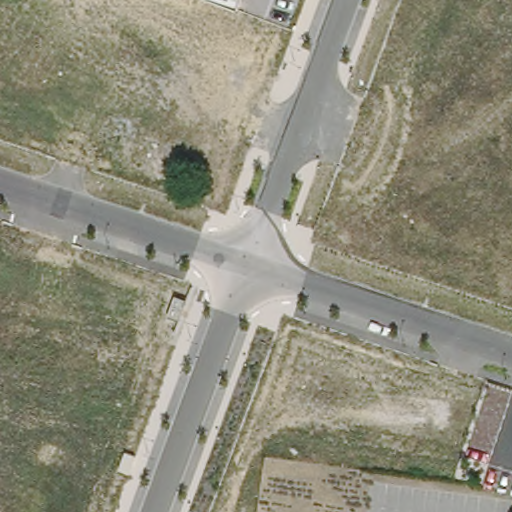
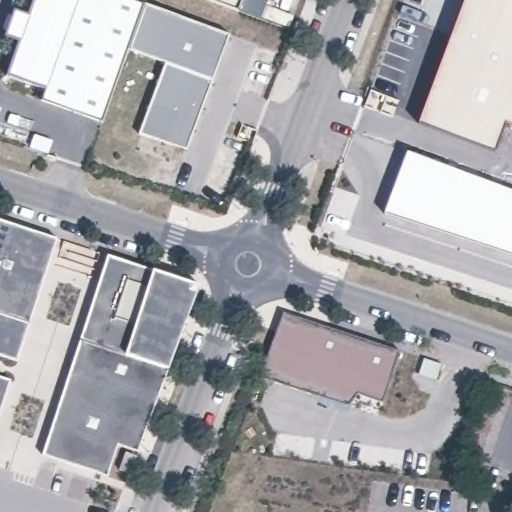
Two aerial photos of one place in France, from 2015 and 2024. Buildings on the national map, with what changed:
new [(42,101),(45,89),(7,75),(20,41),(6,36),(15,10),(29,15),(35,0),(129,0),(143,5),(125,52),(102,123),(42,101)]
unchanged [(214,0),(242,0),(238,9),(214,0)]
new [(465,0),(512,0),(512,57),(452,35),(465,0)]
unchanged [(187,157),(143,140),(168,70),(125,52),(143,5),(226,37),(187,157)]
new [(452,35),(512,57),(512,124),(507,122),(495,152),(419,123),(452,35)]
new [(407,146),(512,186),(512,257),(384,208),(407,146)]
new [(18,358),(0,353),(0,220),(57,239),(18,358)]
new [(153,270),(200,286),(168,368),(141,451),(118,443),(107,476),(45,454),(109,257),(153,270)]
new [(400,353),(384,402),(357,394),(350,404),(260,375),(283,313),(400,353)]
new [(0,412),(0,378),(10,382),(0,412)]

